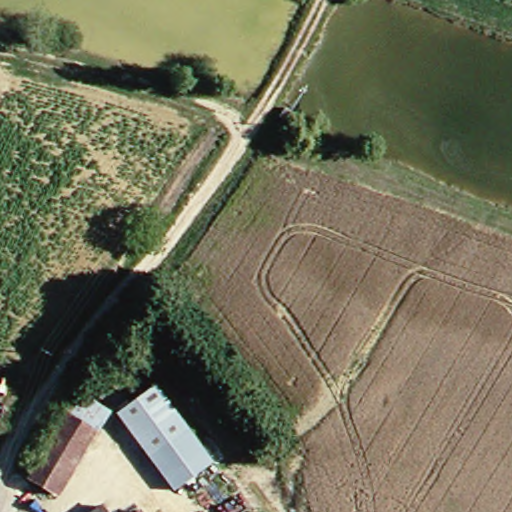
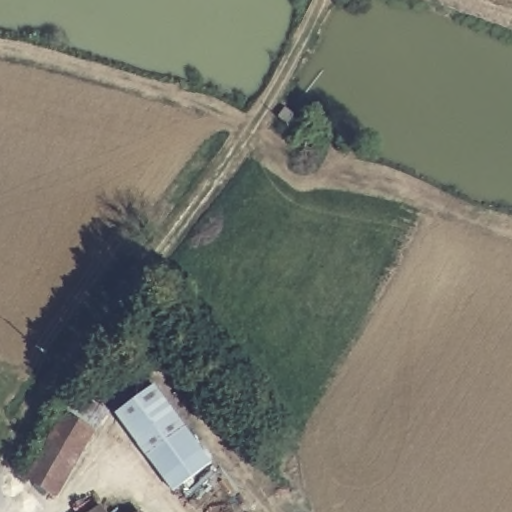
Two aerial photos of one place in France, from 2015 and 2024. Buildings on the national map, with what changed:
unchanged [(206,469),(176,489),(166,496),(145,463),(112,415),(152,388),(206,469)]
unchanged [(71,400),(74,395),(104,414),(98,423),(48,501),(19,482),(71,400)]
unchanged [(122,502),(129,512),(107,512),(121,501),(122,502)]

